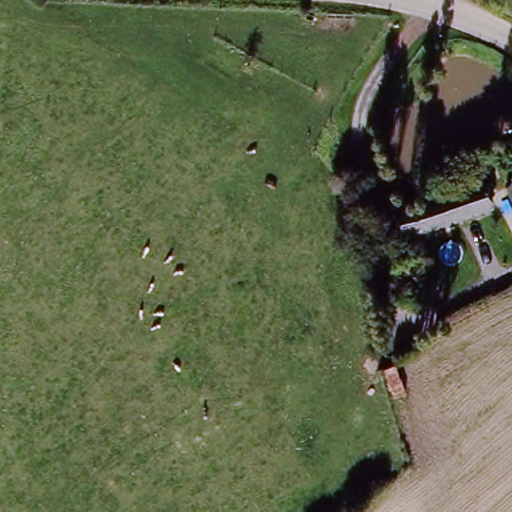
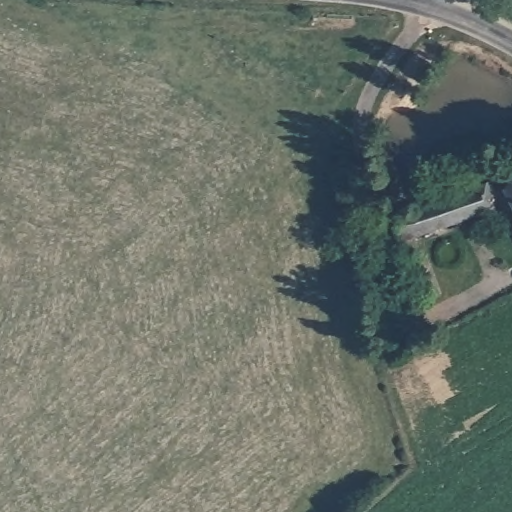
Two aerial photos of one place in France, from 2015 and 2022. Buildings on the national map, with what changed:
unchanged [(512,167),(512,198),(500,173),(512,167)]
unchanged [(406,242),(392,210),(422,198),(481,173),(485,184),(495,204),(471,214),(421,235),(406,242)]

